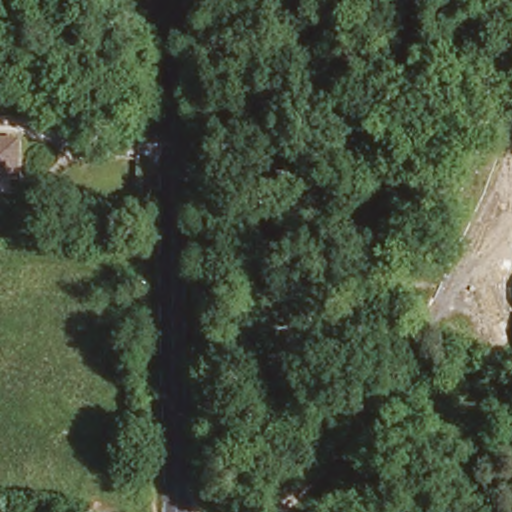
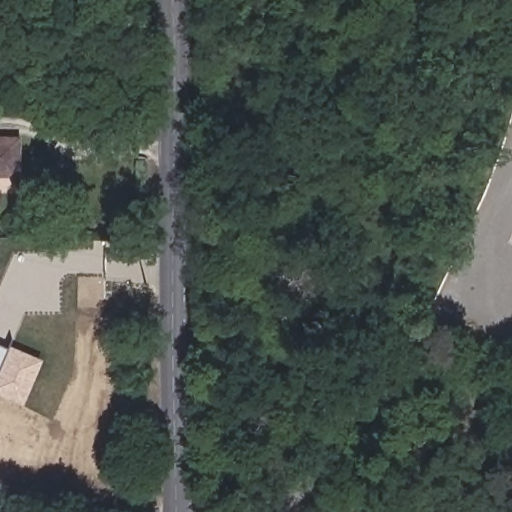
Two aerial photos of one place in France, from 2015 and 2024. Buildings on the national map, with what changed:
unchanged [(15,132),(15,169),(0,168),(0,132),(15,132)]
new [(0,395),(0,345),(42,362),(23,407),(0,395)]

